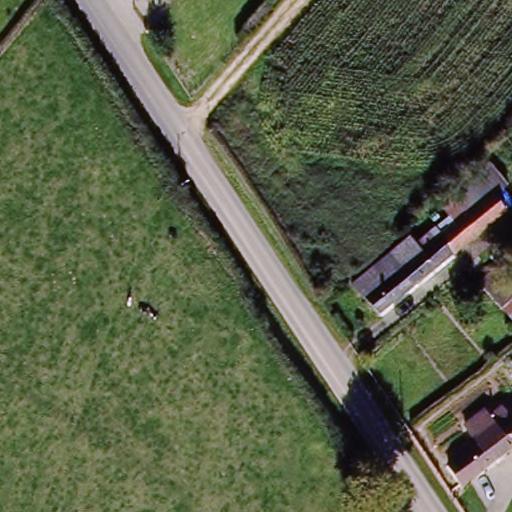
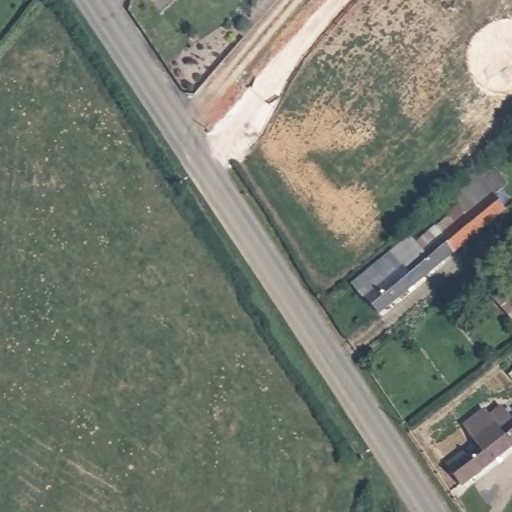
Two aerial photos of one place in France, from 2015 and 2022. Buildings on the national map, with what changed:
unchanged [(457,215),(452,210),(460,203),(464,207),(486,187),(504,206),(457,251),(439,231),(457,215)]
unchanged [(413,235),(423,246),(439,231),(457,251),(384,320),(369,303),(373,300),(358,284),(393,252),(413,235)]
unchanged [(501,310),(481,280),(493,273),(512,292),(512,322),(501,310)]
unchanged [(472,456),(480,450),(464,432),(484,415),(499,432),(509,421),(512,419),(512,449),(486,473),(470,487),(456,471),(472,456)]

